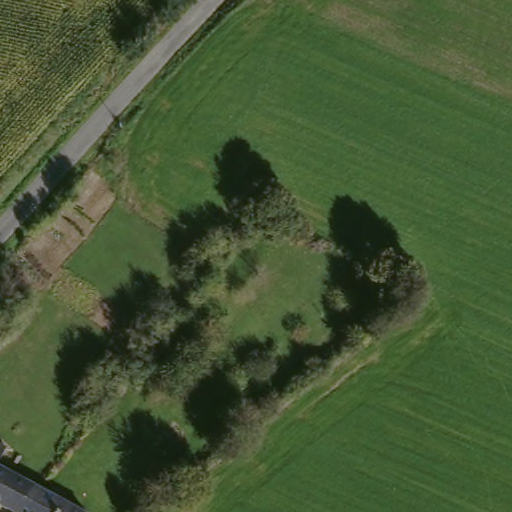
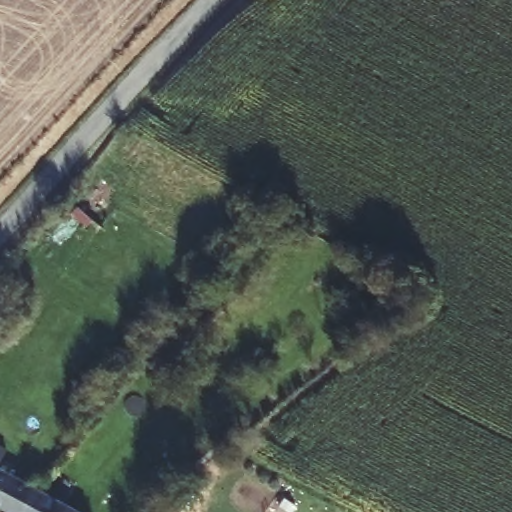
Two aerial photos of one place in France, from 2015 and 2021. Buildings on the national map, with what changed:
unchanged [(7,444),(0,455),(0,440),(7,444)]
unchanged [(36,485),(19,512),(14,512),(0,504),(0,465),(36,485)]
unchanged [(19,512),(36,485),(84,512),(19,512)]

